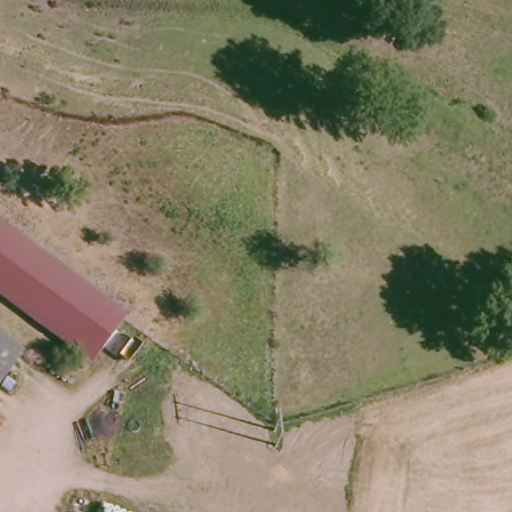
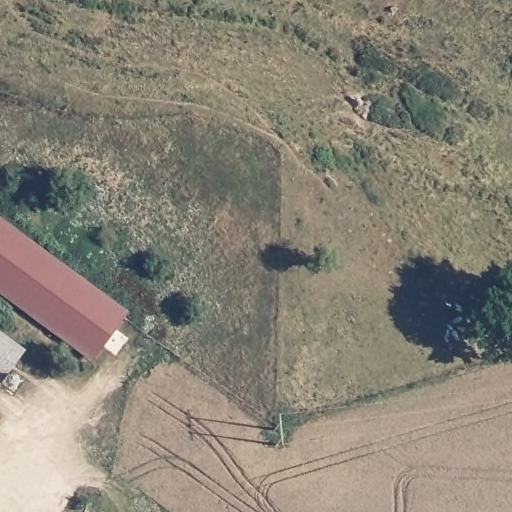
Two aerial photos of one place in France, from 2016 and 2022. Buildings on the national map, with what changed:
unchanged [(125,322),(96,361),(0,290),(0,229),(125,322)]
unchanged [(17,357),(0,380),(0,345),(17,357)]

